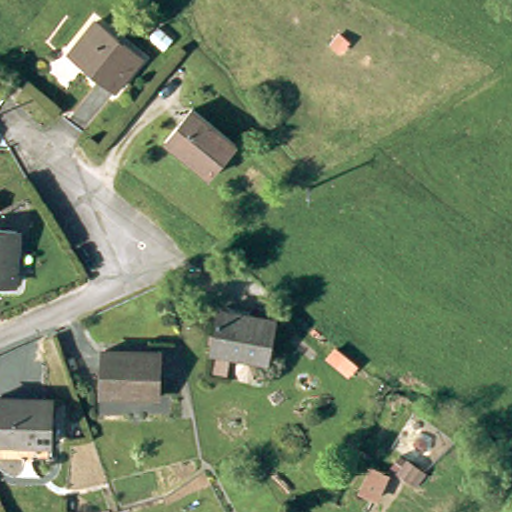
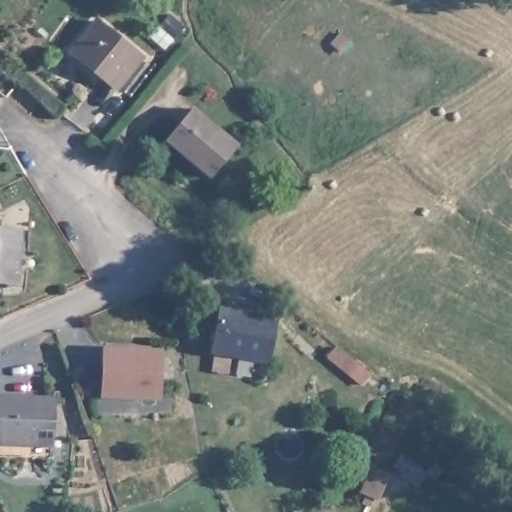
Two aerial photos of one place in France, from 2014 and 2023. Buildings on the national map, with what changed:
unchanged [(69,50),(73,53),(102,20),(146,59),(117,91),(103,79),(96,86),(67,61),(62,58),(69,50)]
unchanged [(192,117),(236,155),(207,185),(166,149),(192,117)]
unchanged [(9,290),(0,290),(0,238),(14,239),(9,290)]
unchanged [(216,314),(265,319),(261,359),(211,354),(216,314)]
unchanged [(105,351),(154,356),(151,398),(102,394),(105,351)]
unchanged [(214,361),(229,362),(227,375),(214,374),(214,361)]
unchanged [(48,442),(0,442),(0,399),(47,399),(48,442)]

